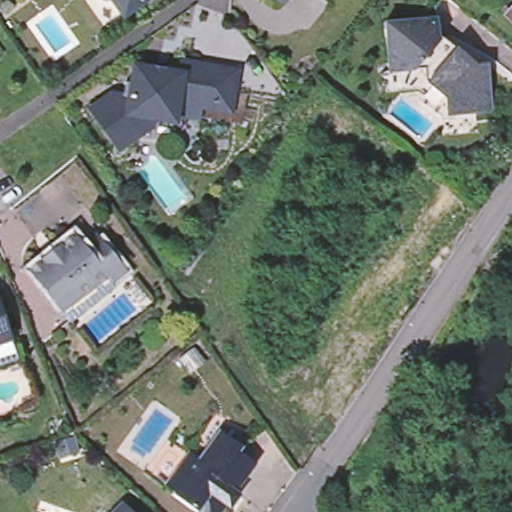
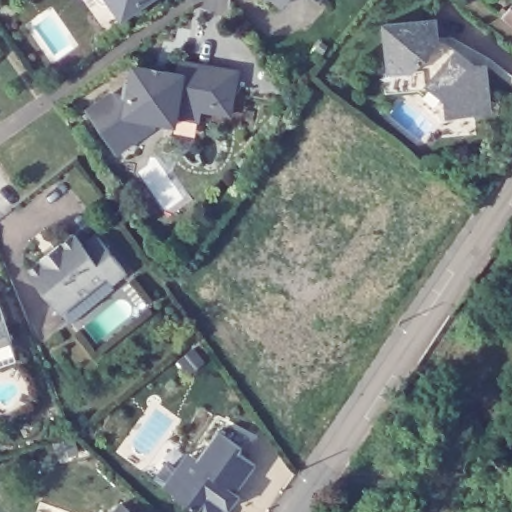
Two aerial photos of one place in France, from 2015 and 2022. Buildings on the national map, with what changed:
unchanged [(112,0),(143,0),(123,15),(112,0)]
unchanged [(276,0),(288,0),(284,7),(276,0)]
unchanged [(499,22),(512,6),(512,33),(499,22)]
unchanged [(436,19),(438,39),(446,46),(450,44),(476,65),(486,63),(490,109),(493,111),(492,113),(488,110),(447,115),(445,99),(424,81),(422,69),(388,72),(383,24),(436,19)]
unchanged [(182,61),(239,72),(231,114),(201,109),(199,120),(177,117),(176,125),(157,122),(155,128),(153,127),(155,121),(141,119),(137,139),(119,152),(89,110),(114,93),(123,94),(125,83),(131,84),(134,66),(155,69),(165,71),(179,74),(182,61)]
unchanged [(43,260),(42,258),(61,243),(62,244),(75,234),(85,246),(96,237),(100,238),(127,271),(112,282),(107,275),(61,312),(29,271),(43,260)]
unchanged [(12,340),(0,343),(0,304),(12,340)]
unchanged [(226,511),(222,507),(218,512),(194,512),(170,494),(171,492),(162,486),(186,453),(191,456),(196,460),(216,431),(240,447),(236,452),(254,465),(234,492),(238,496),(226,511)]
unchanged [(123,497),(138,512),(108,512),(123,497)]

